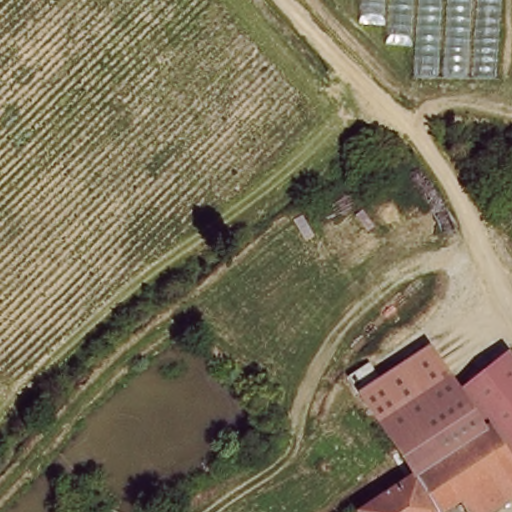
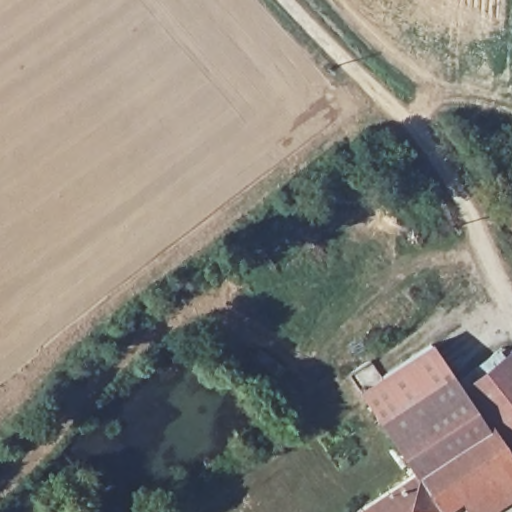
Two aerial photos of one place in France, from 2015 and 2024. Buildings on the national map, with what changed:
demolished [(421,81),(343,0),(501,0),(495,86),(421,81)]
unchanged [(393,434),(366,389),(440,343),(465,384),(393,434)]
unchanged [(491,428),(469,391),(512,365),(512,461),(491,428)]
unchanged [(469,391),(491,428),(418,474),(393,434),(465,384),(469,391)]
unchanged [(361,511),(418,474),(491,428),(512,461),(512,470),(464,500),(444,512),(361,512),(361,511)]
unchanged [(491,512),(471,512),(464,500),(512,470),(512,498),(491,512)]

